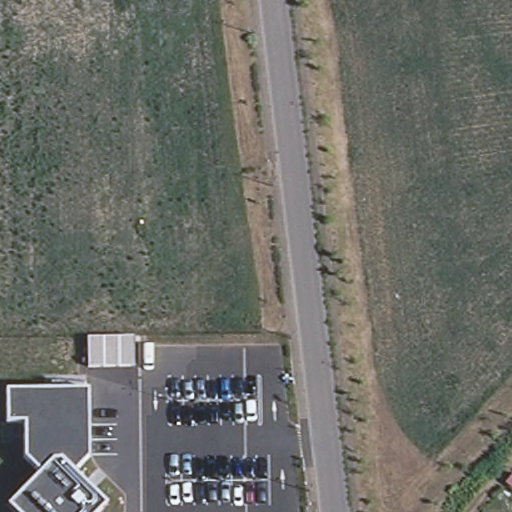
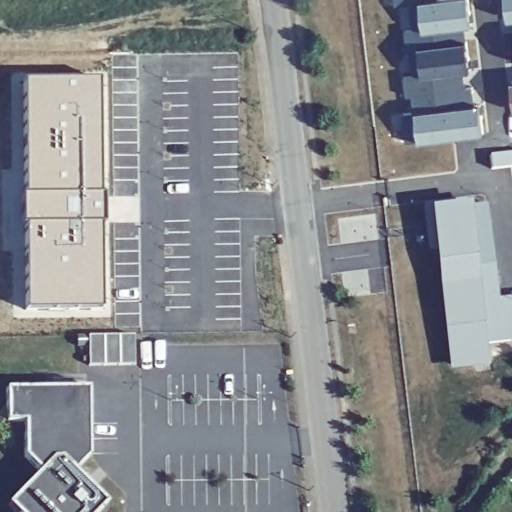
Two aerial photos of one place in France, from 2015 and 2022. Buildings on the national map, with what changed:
new [(436,3),(461,0),(465,0),(469,30),(462,31),(468,76),(463,76),(464,87),(470,86),(472,109),(477,108),(481,138),(416,148),(411,99),(406,99),(404,77),(417,75),(416,53),(404,53),(400,12),(395,12),(394,0),(435,0),(436,3)]
new [(505,26),(503,0),(512,0),(512,26),(505,26)]
new [(94,87),(96,316),(24,316),(20,83),(94,87)]
new [(511,86),(512,86),(512,101),(511,86)]
new [(474,197),(475,204),(489,203),(500,293),(512,293),(512,339),(490,342),(490,365),(450,369),(435,201),(474,197)]
unchanged [(87,337),(134,336),(135,366),(88,366),(87,337)]
unchanged [(39,472),(24,457),(24,422),(6,421),(6,390),(88,389),(88,455),(74,471),(107,503),(99,512),(14,512),(7,505),(39,472)]

